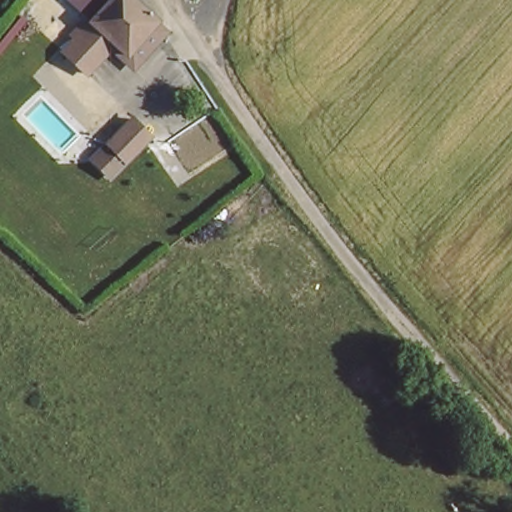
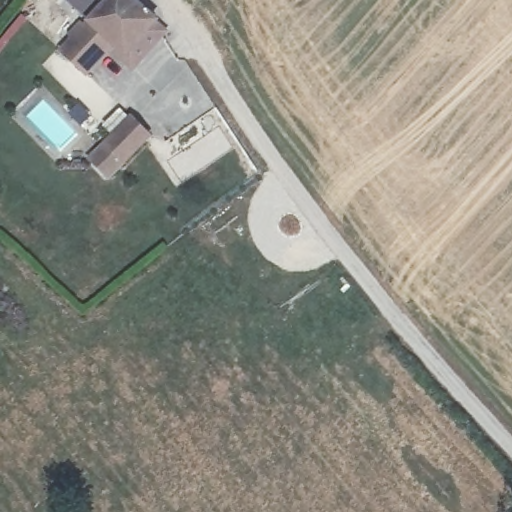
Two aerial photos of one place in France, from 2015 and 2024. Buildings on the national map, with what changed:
unchanged [(56,6),(61,0),(111,0),(82,32),(56,6)]
unchanged [(160,25),(120,65),(105,53),(82,74),(62,55),(82,32),(111,0),(135,0),(160,25)]
unchanged [(98,146),(129,113),(152,135),(120,167),(98,146)]

